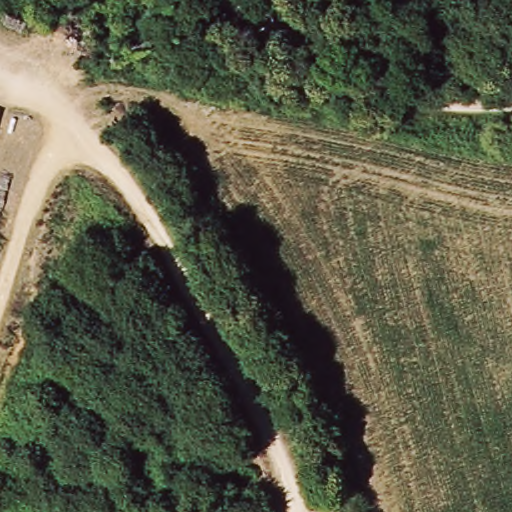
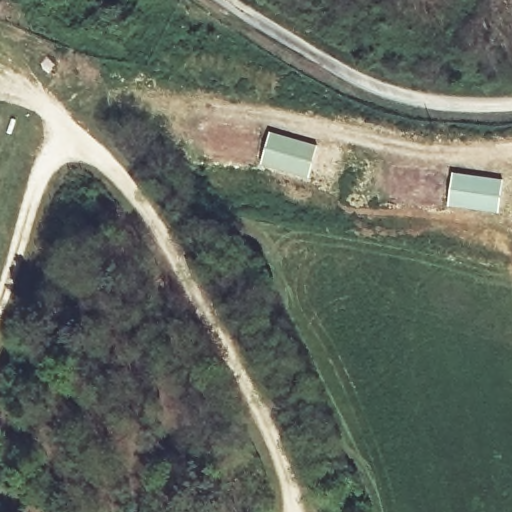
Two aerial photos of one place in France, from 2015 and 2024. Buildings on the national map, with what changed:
new [(268,128),(318,144),(307,179),(258,164),(268,128)]
new [(498,176),(493,210),(443,202),(448,169),(498,176)]

